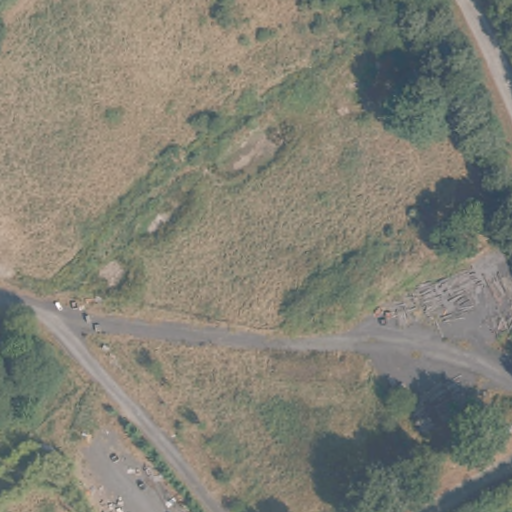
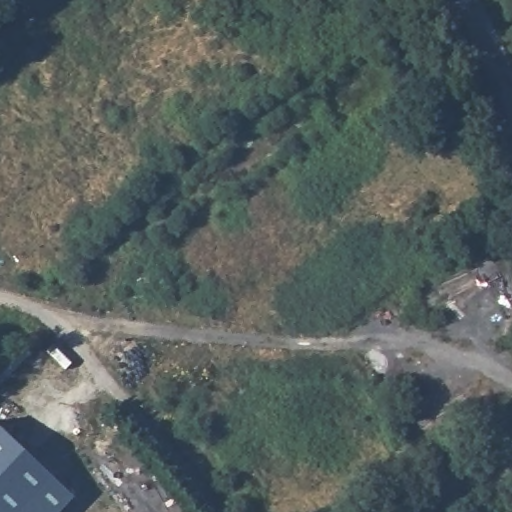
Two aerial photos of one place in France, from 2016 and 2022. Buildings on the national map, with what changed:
new [(0,426),(72,495),(56,512),(0,512),(0,426)]

